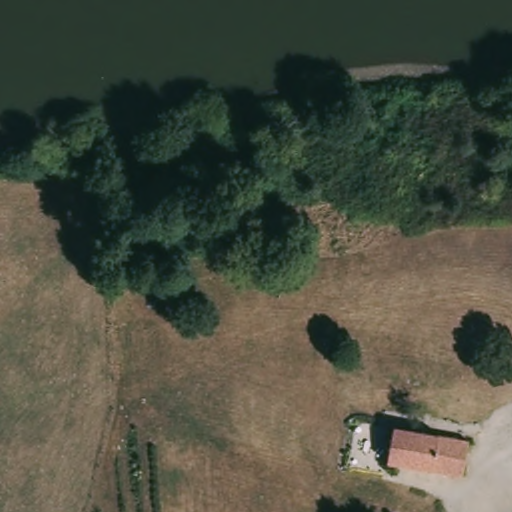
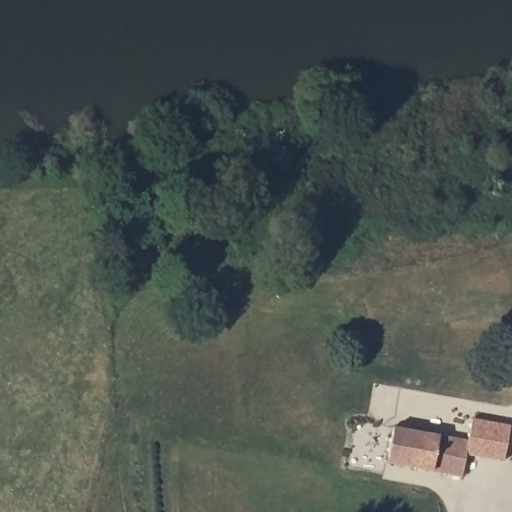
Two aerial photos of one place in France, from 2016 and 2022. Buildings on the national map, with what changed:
new [(510,425),(504,460),(466,453),(470,417),(510,425)]
unchanged [(405,429),(465,444),(457,476),(383,457),(390,426),(405,429)]

